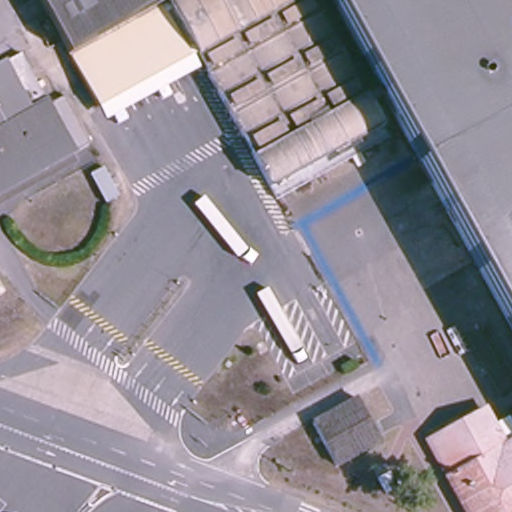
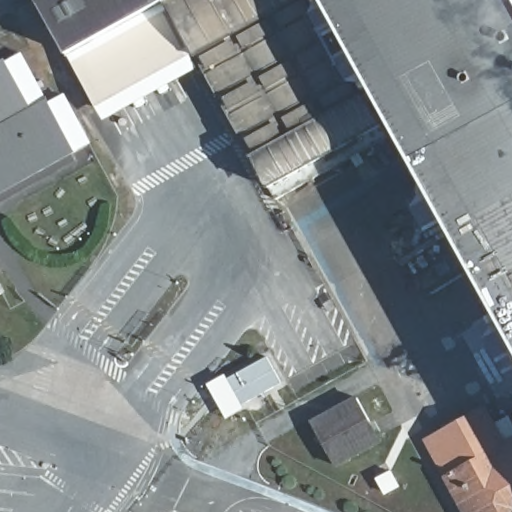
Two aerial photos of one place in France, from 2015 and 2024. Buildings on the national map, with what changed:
unchanged [(512,330),(403,132),(350,159),(313,180),(275,200),(271,190),(206,67),(105,121),(70,51),(42,0),(512,0),(512,330)]
unchanged [(24,55),(50,102),(67,95),(94,142),(77,151),(75,147),(0,187),(0,67),(24,55)]
unchanged [(75,147),(77,151),(81,160),(0,205),(0,187),(75,147)]
demolished [(105,166),(119,192),(104,200),(90,175),(105,166)]
unchanged [(5,291),(0,294),(0,283),(5,291)]
new [(226,375),(230,377),(269,356),(282,382),(226,418),(208,385),(226,375)]
unchanged [(358,398),(381,441),(340,463),(316,420),(358,398)]
unchanged [(508,448),(512,446),(512,512),(475,512),(437,441),(490,413),(508,448)]
unchanged [(393,467),(403,486),(387,495),(377,475),(393,467)]

